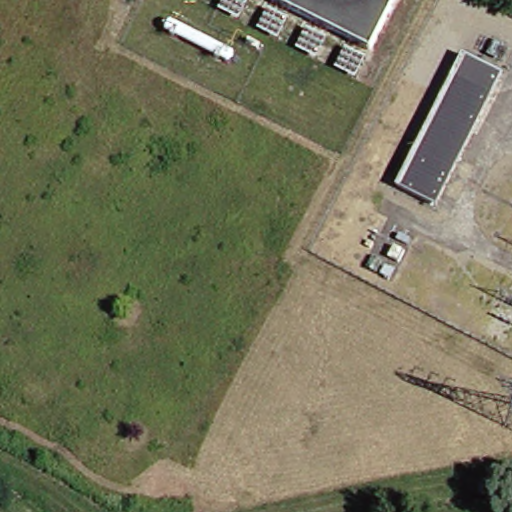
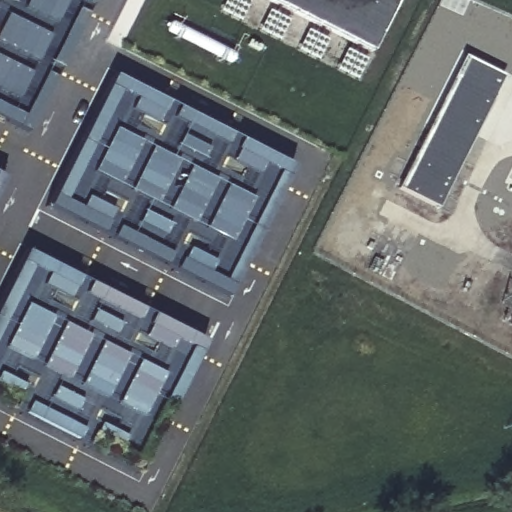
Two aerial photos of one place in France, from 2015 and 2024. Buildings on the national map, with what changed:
new [(0,122),(0,0),(91,0),(24,133),(0,122)]
unchanged [(260,0),(396,0),(368,55),(260,0)]
unchanged [(437,199),(397,178),(453,66),(493,86),(437,199)]
new [(225,298),(45,206),(111,75),(289,167),(225,298)]
new [(135,477),(0,408),(0,295),(21,254),(202,346),(135,477)]

